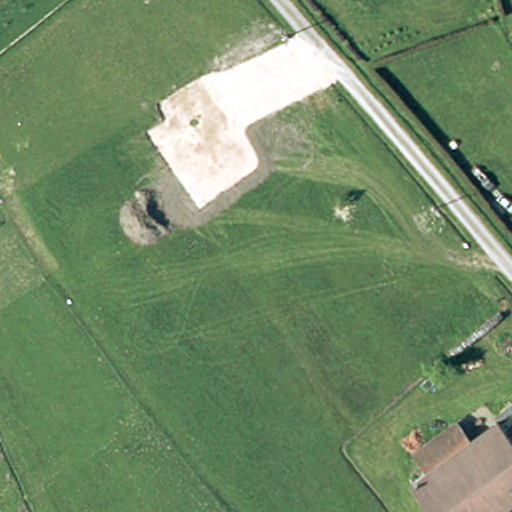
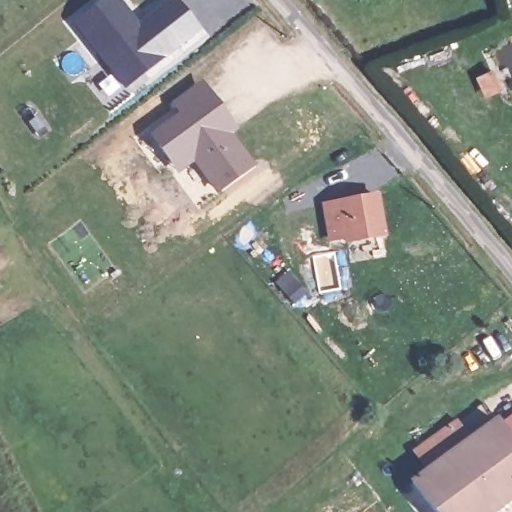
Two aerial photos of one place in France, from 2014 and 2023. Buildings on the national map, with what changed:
new [(201,27),(125,90),(73,24),(103,0),(122,0),(139,22),(165,0),(178,0),(201,27)]
new [(217,194),(193,162),(179,174),(148,135),(177,112),(170,102),(200,78),(239,127),(232,134),(256,164),(217,194)]
new [(387,235),(329,244),(322,202),(379,192),(387,235)]
unchanged [(451,512),(435,491),(444,482),(484,446),(508,424),(510,427),(512,428),(512,507),(506,512),(451,512)]
unchanged [(512,425),(512,428),(510,427),(512,425)]
unchanged [(430,467),(427,463),(467,427),(484,446),(444,482),(430,467)]

